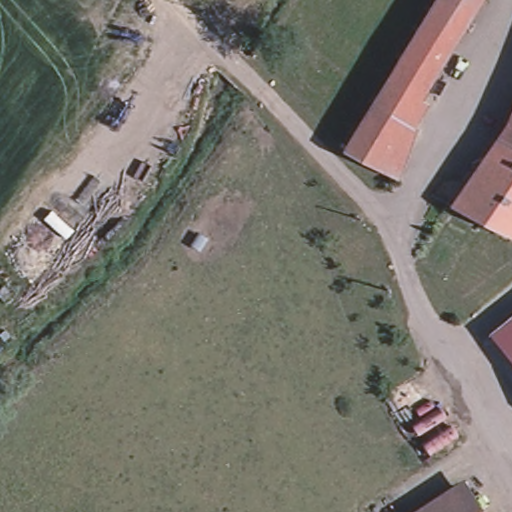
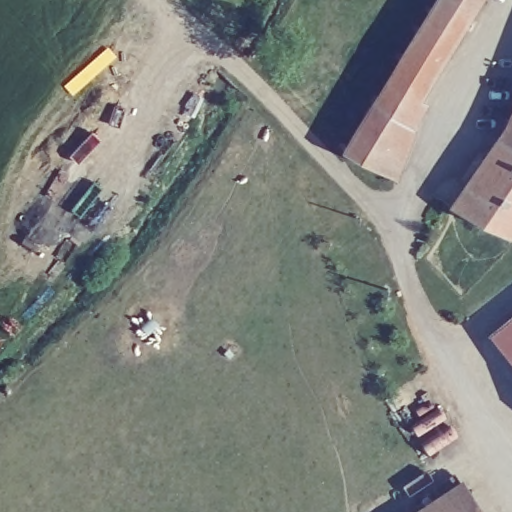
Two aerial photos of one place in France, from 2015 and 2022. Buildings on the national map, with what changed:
unchanged [(419,126),(396,182),(339,154),(343,147),(349,149),(379,92),(438,0),(480,0),(409,119),(419,126)]
unchanged [(453,210),(506,131),(512,116),(512,239),(453,210)]
unchanged [(512,318),(512,362),(491,335),(512,318)]
unchanged [(464,474),(488,512),(406,512),(464,474)]

